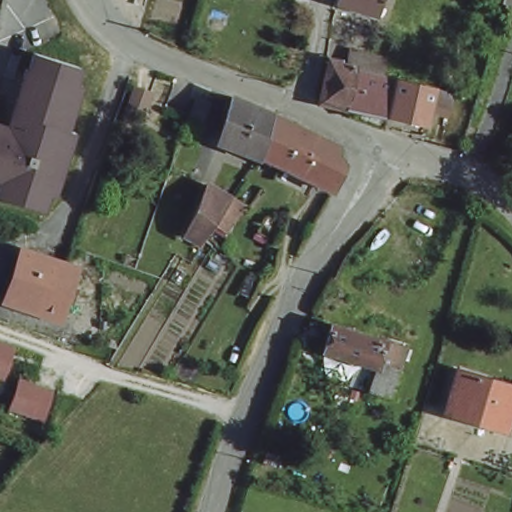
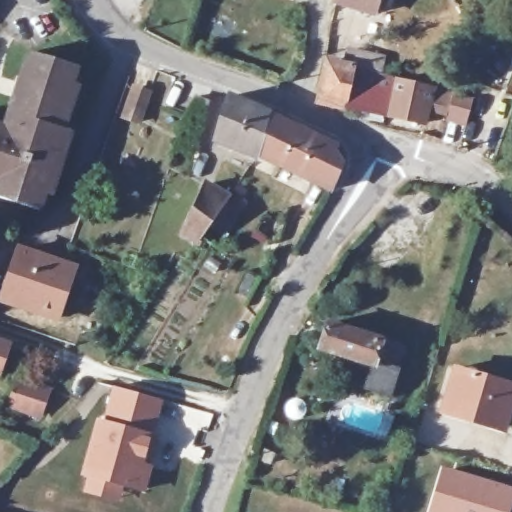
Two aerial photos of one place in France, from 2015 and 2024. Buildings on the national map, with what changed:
unchanged [(335,9),(337,0),(378,0),(373,19),(335,9)]
unchanged [(319,107),(327,70),(342,72),(347,47),(359,49),(382,58),(376,79),(351,72),(344,112),(319,107)]
unchanged [(14,101),(10,99),(20,69),(24,71),(30,54),(73,68),(69,84),(74,86),(68,99),(71,100),(61,127),(67,129),(50,180),(53,181),(48,195),(41,192),(35,208),(0,196),(0,128),(5,129),(14,101)]
unchanged [(351,72),(376,79),(395,83),(387,121),(344,112),(351,72)]
unchanged [(453,98),(448,117),(427,112),(424,128),(387,121),(395,83),(430,92),(453,98)]
unchanged [(211,136),(224,92),(262,111),(255,141),(252,152),(211,136)]
unchanged [(205,102),(196,127),(184,122),(192,97),(205,102)]
unchanged [(329,142),(326,152),(335,159),(332,165),(323,186),(276,161),(252,152),(255,141),(262,111),(329,142)]
unchanged [(226,210),(235,197),(250,209),(223,242),(199,227),(190,244),(171,222),(204,184),(226,210)]
unchanged [(71,267),(53,320),(1,301),(19,249),(71,267)]
unchanged [(384,398),(359,391),(366,367),(313,351),(321,325),(392,347),(385,370),(392,372),(384,398)]
unchanged [(4,372),(0,371),(0,339),(14,343),(4,372)]
unchanged [(512,389),(512,403),(505,430),(444,412),(455,372),(512,389)]
unchanged [(53,386),(47,417),(11,407),(19,378),(53,386)]
new [(150,437),(157,437),(143,489),(123,483),(117,498),(87,490),(91,473),(87,472),(100,422),(106,423),(115,388),(159,400),(150,437)]
new [(440,465),(512,486),(512,507),(510,512),(426,512),(440,465)]

